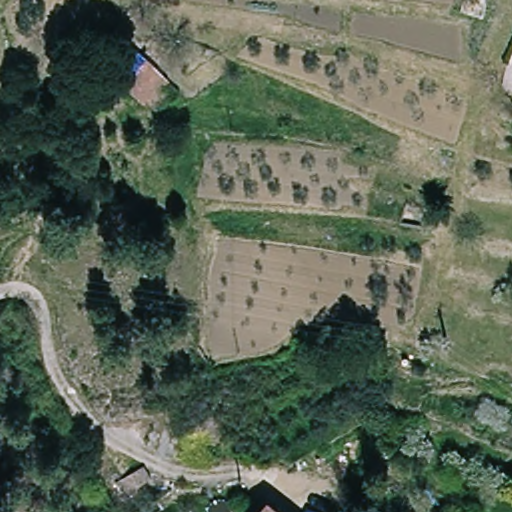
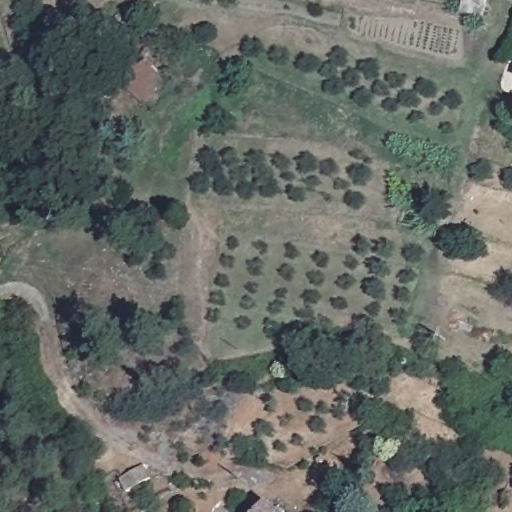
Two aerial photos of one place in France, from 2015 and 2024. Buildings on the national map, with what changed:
unchanged [(143,466),(151,482),(128,492),(120,481),(143,466)]
unchanged [(278,512),(265,512),(270,505),(278,512)]

